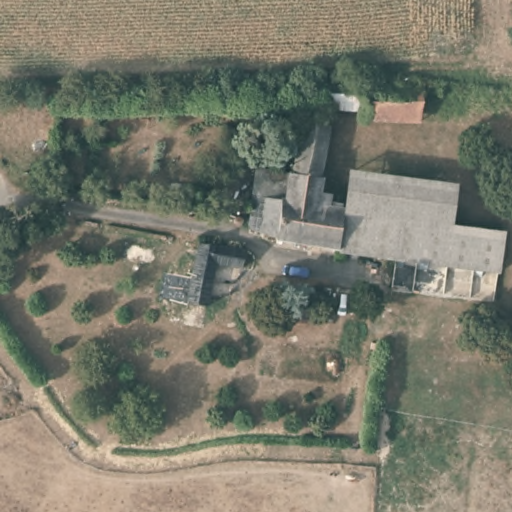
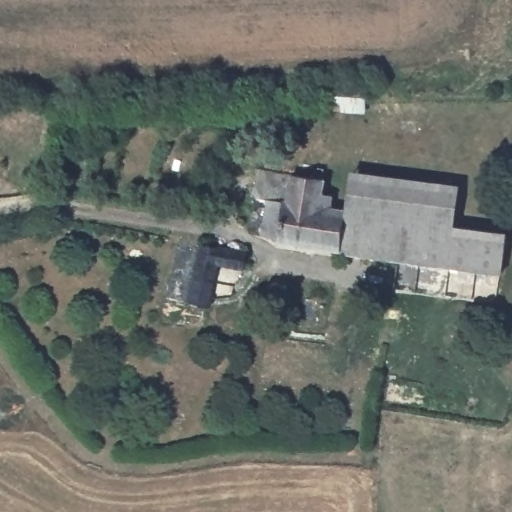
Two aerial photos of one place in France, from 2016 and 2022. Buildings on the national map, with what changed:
unchanged [(330,83),(365,84),(361,111),(325,109),(327,97),(330,83)]
unchanged [(256,180),(259,165),(294,170),(325,173),(323,190),(332,192),(331,204),(348,206),(340,247),(278,237),(278,230),(249,224),(253,201),(245,196),(246,184),(256,180)]
unchanged [(348,206),(353,167),(456,180),(450,219),(348,206)]
unchanged [(450,219),(505,226),(501,267),(393,255),(340,247),(348,206),(450,219)]
unchanged [(199,240),(247,250),(243,268),(217,264),(209,307),(190,304),(190,294),(199,240)]

